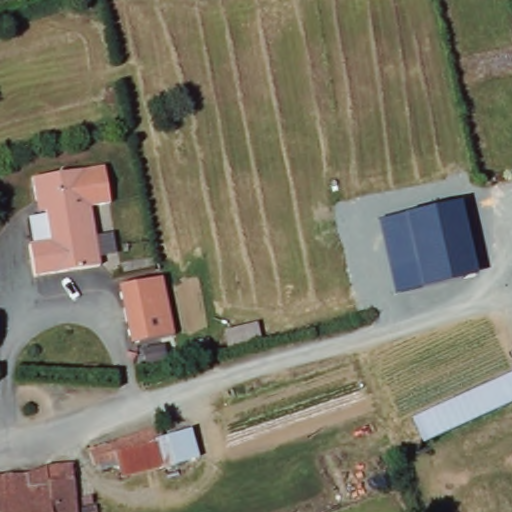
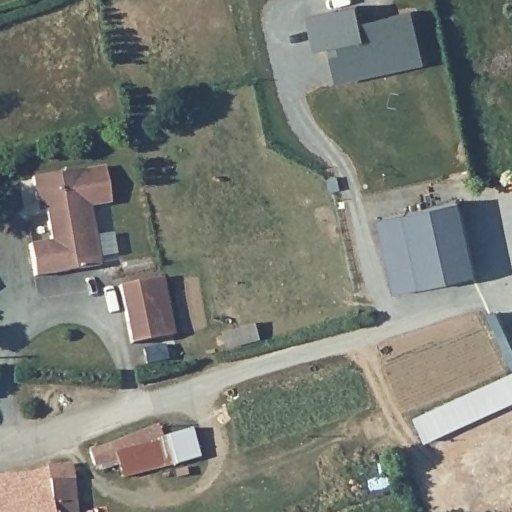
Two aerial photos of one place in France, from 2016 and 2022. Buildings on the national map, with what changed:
new [(330,45),(313,50),(307,16),(357,5),(361,22),(412,10),(423,64),(337,82),(330,45)]
unchanged [(119,251),(104,255),(105,263),(42,276),(36,246),(54,242),(42,179),(88,170),(108,167),(115,202),(95,205),(100,235),(115,232),(119,251)]
unchanged [(378,221),(462,203),(478,275),(395,295),(378,221)]
unchanged [(158,278),(170,335),(127,344),(116,286),(158,278)]
unchanged [(138,364),(136,350),(155,346),(157,362),(138,364)]
unchanged [(417,422),(512,377),(512,407),(428,447),(417,422)]
unchanged [(161,424),(167,437),(195,428),(202,459),(122,480),(120,467),(95,469),(89,450),(161,424)]
unchanged [(97,512),(0,512),(0,476),(34,471),(48,465),(49,479),(74,476),(76,486),(93,482),(97,512)]

